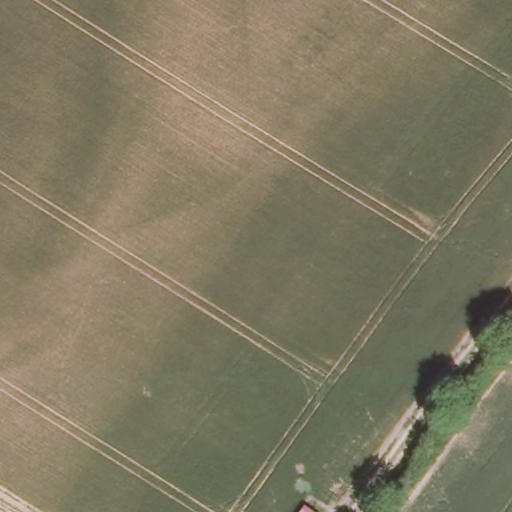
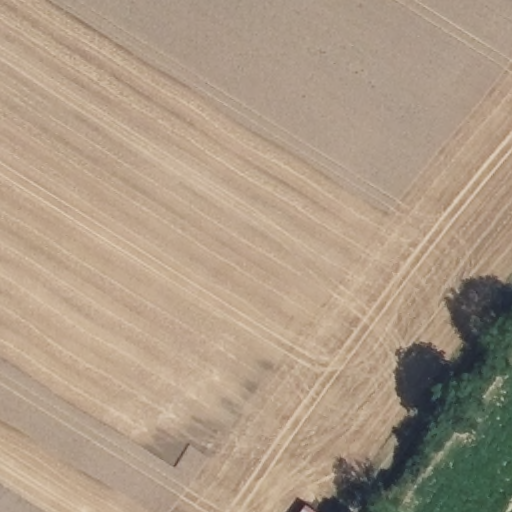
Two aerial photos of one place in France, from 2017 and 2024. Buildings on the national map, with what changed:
unchanged [(318,512),(294,512),(301,501),(318,512)]

